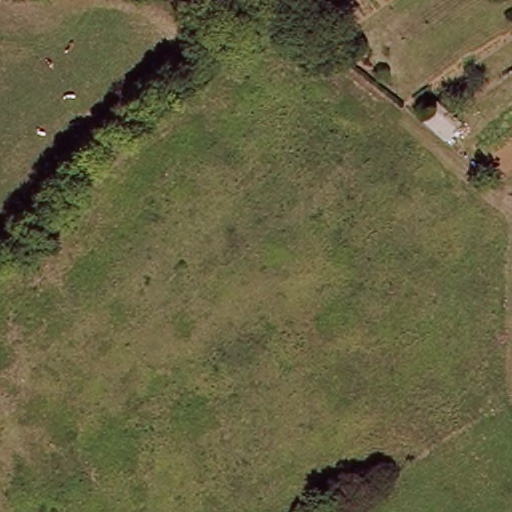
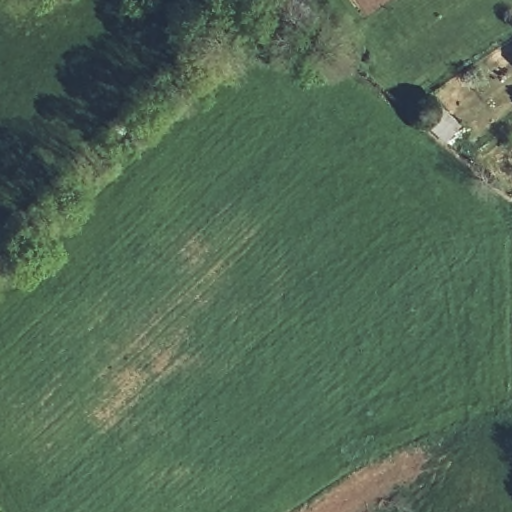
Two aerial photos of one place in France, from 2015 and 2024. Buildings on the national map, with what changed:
unchanged [(464,125),(447,145),(420,122),(435,104),(464,125)]

